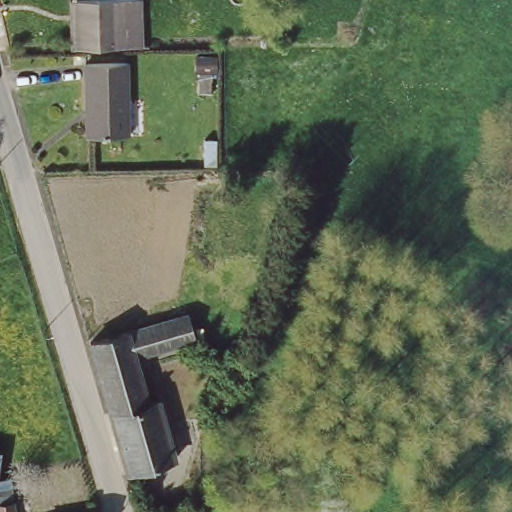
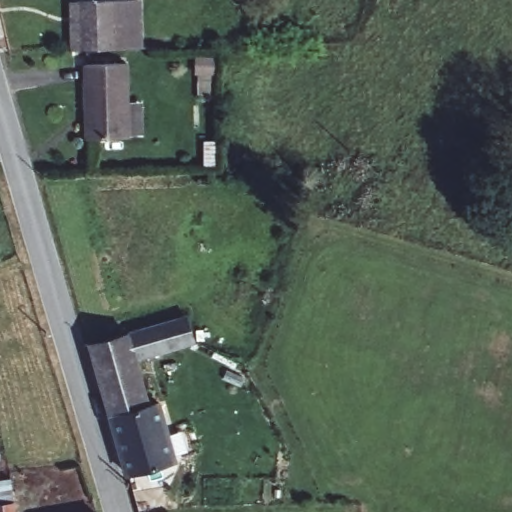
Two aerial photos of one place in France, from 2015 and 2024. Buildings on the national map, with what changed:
unchanged [(110,44),(69,46),(69,0),(131,0),(131,35),(132,42),(110,44)]
unchanged [(83,80),(82,65),(130,64),(130,80),(132,139),(84,140),(83,80)]
unchanged [(155,410),(164,408),(179,463),(131,480),(96,347),(155,331),(159,330),(190,321),(198,347),(166,356),(142,363),(155,410)]
unchanged [(0,480),(12,480),(13,488),(16,512),(0,512),(0,504),(3,503),(0,480)]

